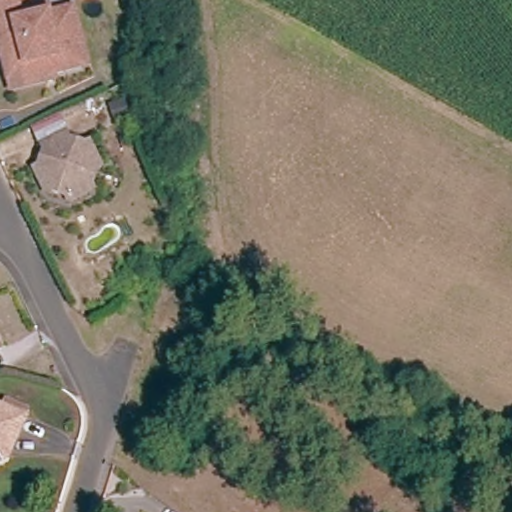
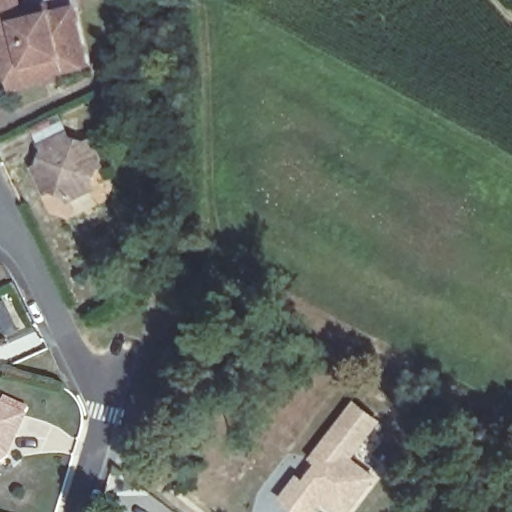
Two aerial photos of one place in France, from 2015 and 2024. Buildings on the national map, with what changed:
unchanged [(7,47),(2,49),(0,41),(0,0),(23,0),(26,12),(54,5),(56,14),(79,8),(94,66),(60,74),(17,85),(12,71),(7,47)]
unchanged [(121,104),(127,122),(113,127),(107,109),(121,104)]
unchanged [(85,154),(89,152),(100,175),(96,177),(91,193),(92,196),(70,208),(67,204),(52,199),(48,200),(37,177),(41,175),(46,159),(44,156),(35,136),(57,125),(67,144),(69,148),(85,154)]
unchanged [(0,348),(0,343),(2,347),(0,348)]
unchanged [(0,405),(2,401),(27,413),(23,420),(14,442),(7,455),(6,459),(0,463),(0,405)]
new [(354,459),(377,477),(350,512),(334,512),(322,504),(316,512),(295,512),(278,499),(297,475),(304,480),(315,465),(307,459),(355,401),(383,422),(354,459)]

